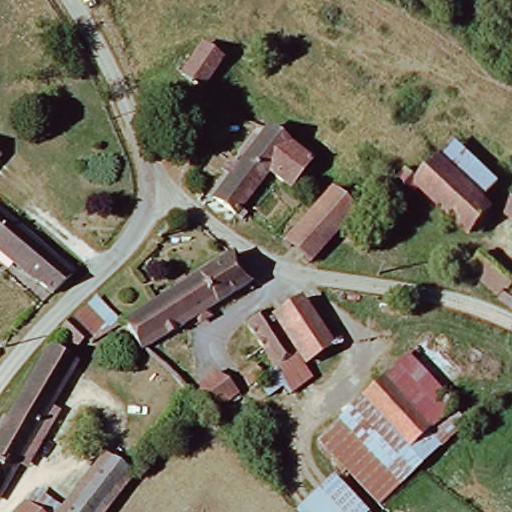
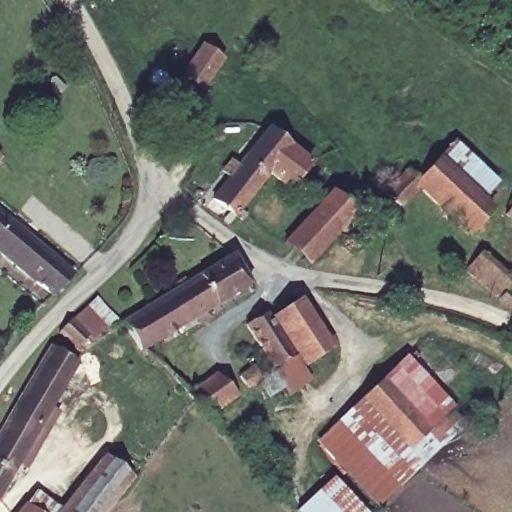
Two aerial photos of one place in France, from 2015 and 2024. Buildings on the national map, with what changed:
unchanged [(192,49),(210,61),(192,87),(174,75),(192,49)]
unchanged [(302,157),(285,183),(260,175),(230,215),(209,198),(260,129),(302,157)]
unchanged [(432,160),(447,144),(491,185),(477,200),(432,160)]
unchanged [(414,189),(395,208),(380,194),(403,170),(413,180),(432,160),(477,200),(485,207),(477,217),(485,223),(476,232),(469,228),(462,235),(414,189)]
unchanged [(34,180),(45,165),(60,177),(48,191),(34,180)]
unchanged [(337,227),(300,262),(282,241),(332,196),(352,212),(337,227)]
unchanged [(502,220),(512,205),(512,227),(502,220)]
unchanged [(0,220),(62,273),(41,296),(0,260),(0,220)]
unchanged [(154,300),(230,252),(246,281),(141,348),(119,320),(154,300)]
unchanged [(455,268),(468,255),(475,260),(500,278),(496,285),(512,298),(512,309),(507,315),(465,280),(457,272),(455,268)]
unchanged [(113,321),(85,342),(82,340),(72,348),(51,329),(67,317),(90,297),(113,321)]
unchanged [(300,365),(273,321),(297,305),(325,349),(300,365)]
unchanged [(245,327),(253,321),(250,312),(259,307),(292,357),(271,372),(245,327)]
unchanged [(72,363),(0,487),(0,425),(45,346),(72,363)]
unchanged [(405,360),(449,411),(421,436),(433,448),(370,504),(315,441),(405,360)]
unchanged [(192,395),(222,368),(242,392),(215,417),(196,397),(192,395)]
unchanged [(127,477),(102,512),(54,512),(97,455),(127,477)]
unchanged [(294,512),(292,510),(327,476),(362,512),(294,512)]
unchanged [(24,512),(16,512),(19,508),(24,512)]

